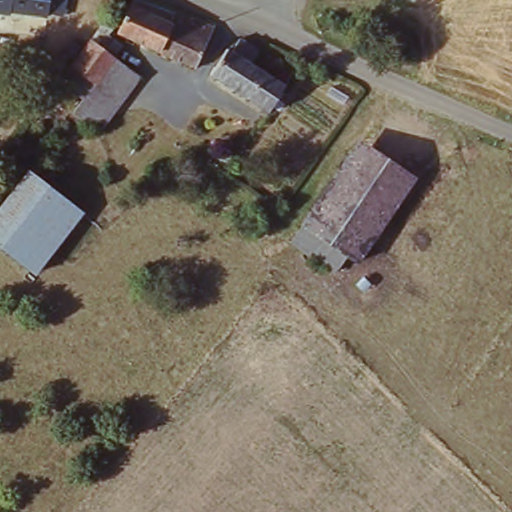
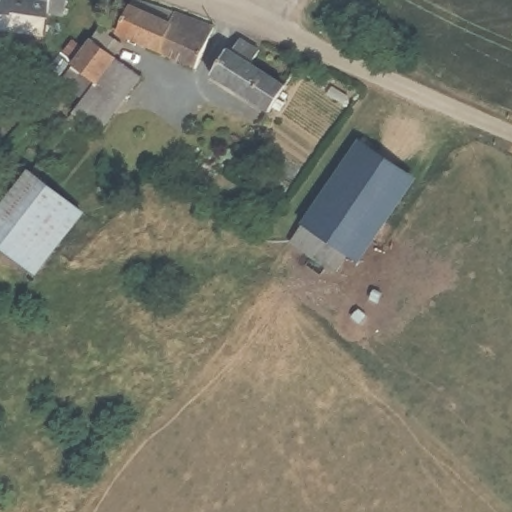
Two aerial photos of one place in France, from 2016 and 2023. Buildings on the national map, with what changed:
unchanged [(45,20),(17,15),(17,20),(0,17),(0,0),(48,0),(45,20)]
unchanged [(204,69),(125,39),(134,7),(214,37),(204,69)]
unchanged [(117,32),(109,43),(118,48),(107,59),(144,87),(100,140),(72,118),(84,105),(58,87),(75,65),(110,23),(117,32)]
unchanged [(261,60),(252,75),(283,95),(277,108),(284,112),(278,121),(272,115),(263,127),(209,91),(229,59),(232,62),(241,48),(261,60)]
unchanged [(359,148),(416,185),(357,268),(345,260),(301,230),(359,148)]
unchanged [(91,216),(46,280),(0,248),(0,229),(36,177),(91,216)]
unchanged [(301,230),(345,260),(332,277),(290,247),(301,230)]

